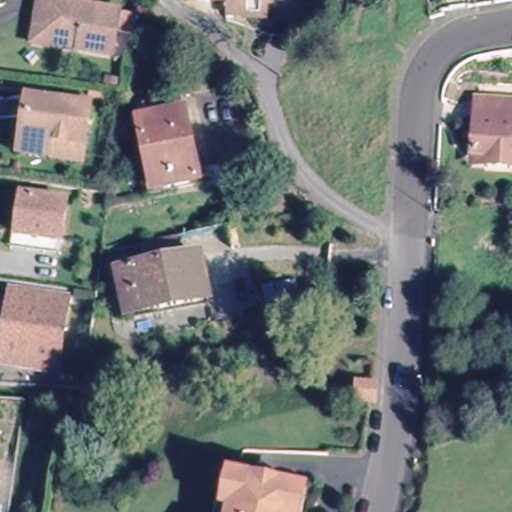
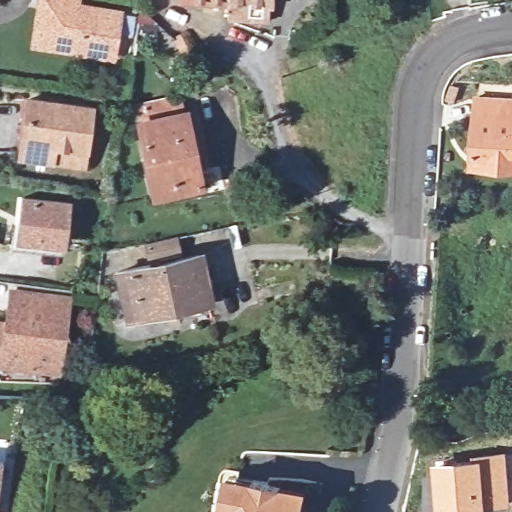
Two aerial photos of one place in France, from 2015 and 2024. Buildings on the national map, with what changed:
unchanged [(31,0),(70,0),(69,11),(108,17),(101,63),(66,57),(24,50),(31,6),(31,0)]
unchanged [(175,7),(175,0),(222,0),(222,9),(175,7)]
unchanged [(222,17),(222,9),(222,0),(266,0),(266,19),(222,17)]
unchanged [(187,28),(195,46),(181,53),(172,35),(187,28)]
unchanged [(12,161),(15,146),(21,106),(81,115),(75,155),(42,151),(40,165),(12,161)]
unchanged [(476,164),(465,163),(467,107),(509,110),(506,176),(476,175),(476,164)]
unchanged [(142,122),(188,115),(202,185),(157,193),(142,122)]
unchanged [(18,202),(62,210),(56,249),(12,242),(18,202)]
unchanged [(114,273),(197,256),(207,302),(124,319),(114,273)]
unchanged [(0,371),(0,334),(1,335),(7,300),(47,307),(61,309),(53,353),(49,379),(0,371)]
new [(507,452),(511,506),(475,510),(437,511),(435,461),(507,452)]
unchanged [(237,484),(239,477),(257,480),(283,485),(302,490),(301,496),(297,512),(232,512),(237,484)]

